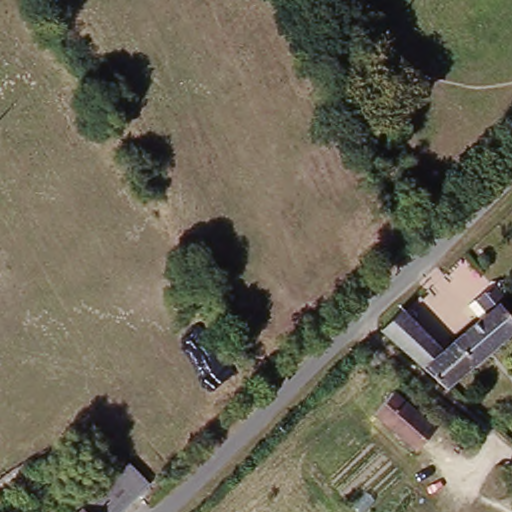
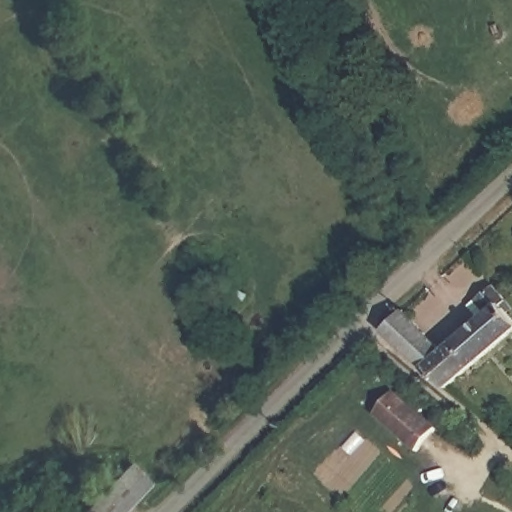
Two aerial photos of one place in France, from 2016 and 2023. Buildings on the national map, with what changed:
unchanged [(443,350),(486,312),(471,296),(488,281),(507,300),(501,305),(512,318),(512,330),(447,389),(381,331),(402,313),(443,350)]
unchanged [(436,431),(416,452),(376,418),(397,396),(436,431)]
unchanged [(131,464),(152,485),(125,512),(115,512),(101,496),(131,464)]
unchanged [(101,496),(115,512),(85,512),(101,496)]

